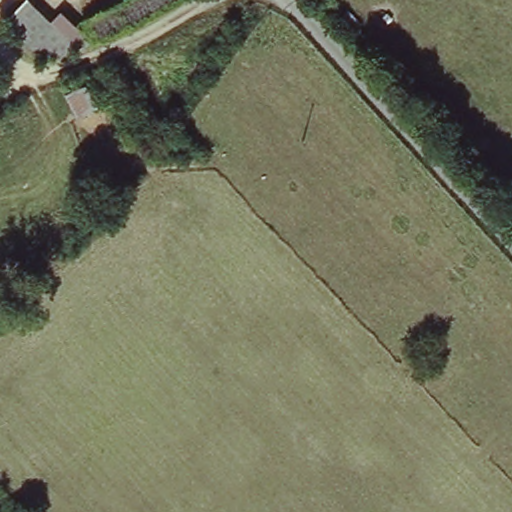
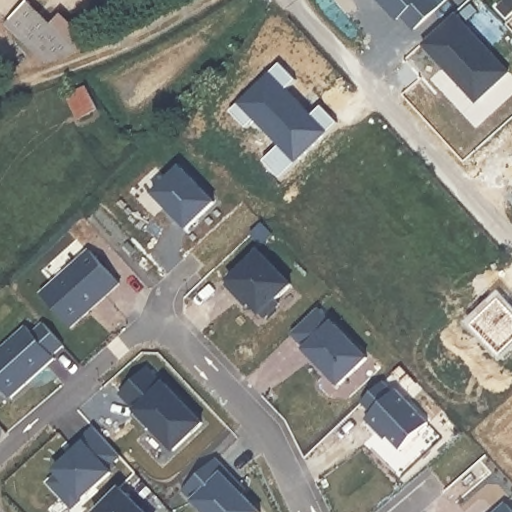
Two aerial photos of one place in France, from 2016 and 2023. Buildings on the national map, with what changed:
new [(416,28),(402,14),(401,15),(390,3),(387,5),(382,0),(446,0),(416,28)]
unchanged [(12,26),(9,23),(29,3),(80,51),(46,63),(10,27),(12,26)]
new [(423,43),(458,13),(511,72),(475,105),(423,43)]
unchanged [(64,96),(86,84),(99,110),(76,121),(64,96)]
new [(182,169),(214,205),(188,229),(169,208),(167,209),(155,195),(182,169)]
new [(90,251),(120,284),(72,328),(42,295),(90,251)]
new [(291,287),(275,302),(278,305),(264,319),(244,297),(241,300),(226,285),(259,254),(291,287)]
new [(317,310),(332,325),(333,324),(367,359),(338,386),(305,351),(306,350),(292,334),(317,310)]
new [(32,334),(44,324),(64,347),(52,357),(55,359),(10,399),(0,388),(0,351),(27,328),(32,334)]
new [(164,384),(202,422),(174,451),(157,433),(152,437),(138,422),(142,418),(119,394),(146,368),(163,385),(164,384)]
new [(400,451),(381,431),(378,434),(365,420),(372,414),(361,403),(383,383),(393,394),(397,391),(428,424),(400,451)]
new [(119,456),(106,468),(111,473),(71,509),(49,484),(73,463),(74,456),(70,451),(95,429),(119,456)]
new [(240,485),(236,488),(259,512),(203,512),(183,491),(216,460),(240,485)]
new [(96,512),(120,488),(144,512),(96,512)]
new [(512,511),(512,512),(497,512),(506,505),(512,511)]

